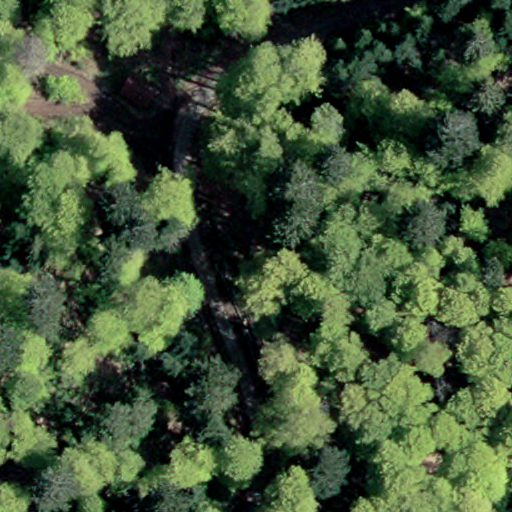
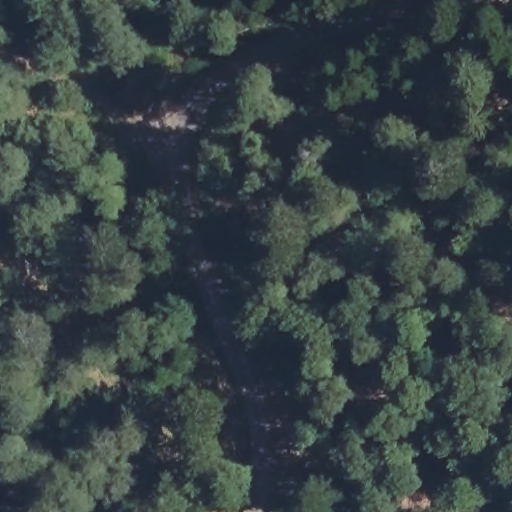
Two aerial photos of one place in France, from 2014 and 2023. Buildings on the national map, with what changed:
unchanged [(143,120),(110,100),(125,78),(157,99),(143,120)]

